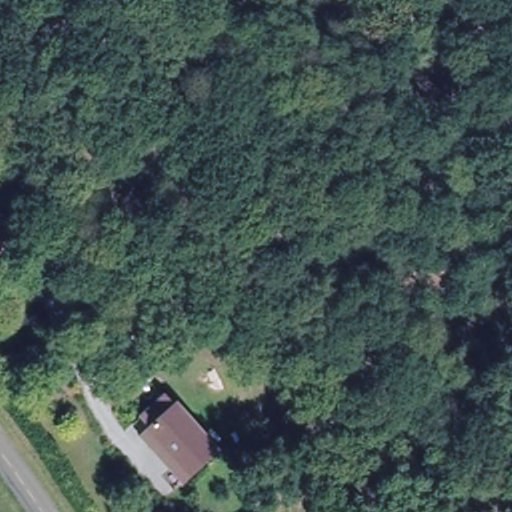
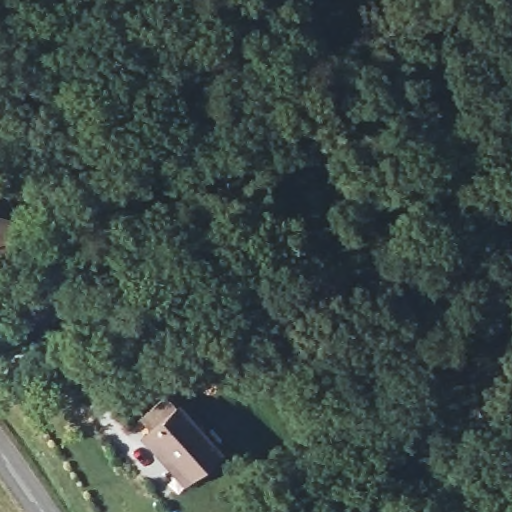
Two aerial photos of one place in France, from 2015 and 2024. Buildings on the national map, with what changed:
unchanged [(5,251),(0,249),(0,213),(15,219),(5,251)]
unchanged [(159,421),(169,413),(161,404),(177,392),(226,450),(187,482),(171,461),(147,430),(159,421)]

